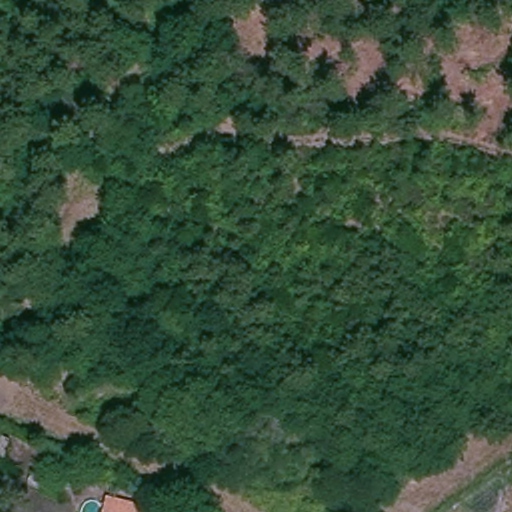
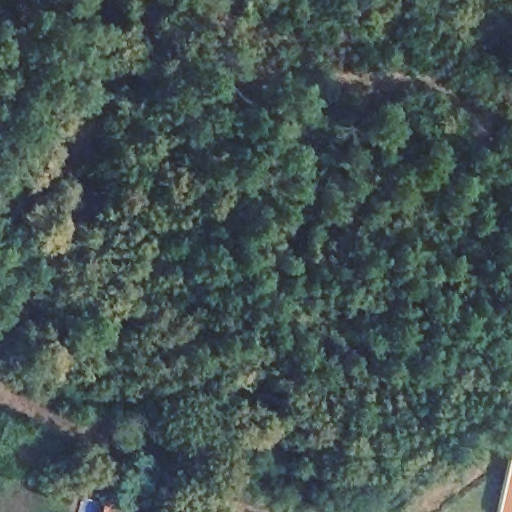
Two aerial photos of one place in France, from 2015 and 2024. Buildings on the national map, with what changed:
new [(512,512),(499,512),(511,456),(512,456),(512,512)]
unchanged [(137,512),(101,512),(104,497),(138,505),(137,512)]

